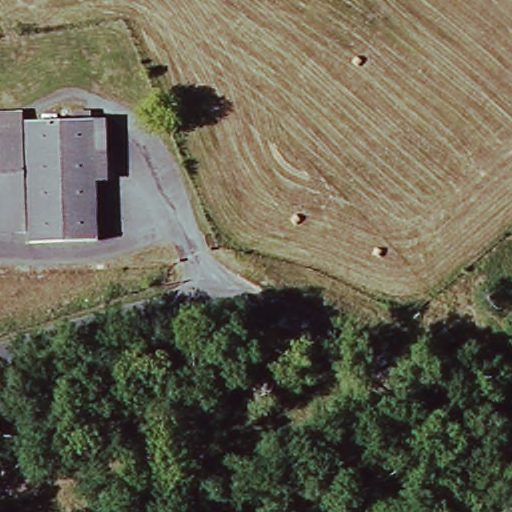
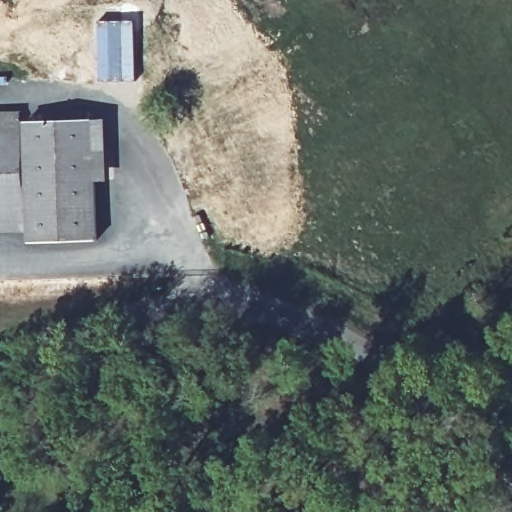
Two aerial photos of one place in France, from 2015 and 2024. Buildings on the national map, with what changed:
new [(98,20),(137,19),(137,81),(98,81),(98,20)]
unchanged [(24,131),(0,131),(0,108),(23,108),(24,131)]
unchanged [(102,236),(35,237),(33,116),(99,114),(102,236)]
unchanged [(25,226),(0,226),(0,131),(24,131),(25,226)]
unchanged [(110,512),(83,512),(80,507),(104,497),(110,512)]

